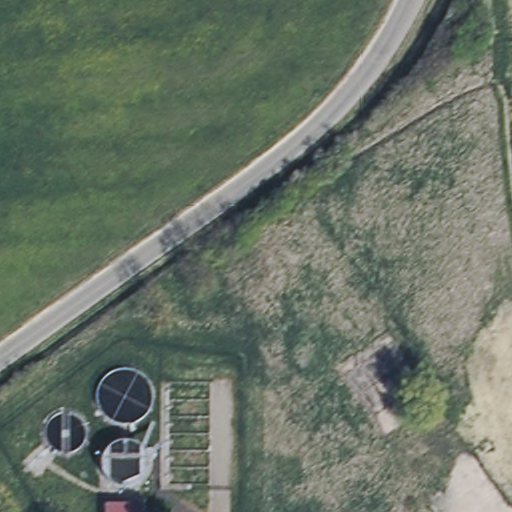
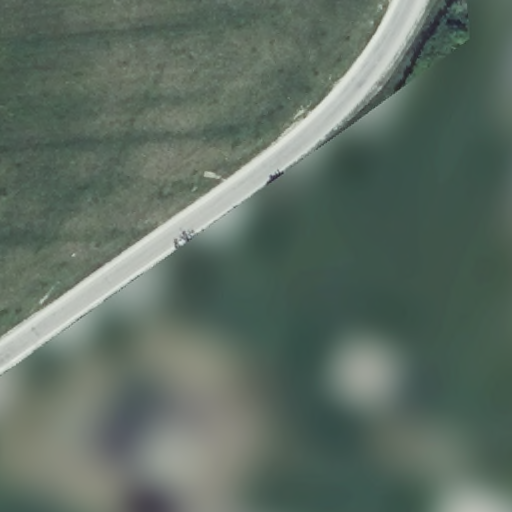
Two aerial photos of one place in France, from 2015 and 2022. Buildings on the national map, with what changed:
unchanged [(104,503),(144,502),(145,512),(104,512),(104,503)]

